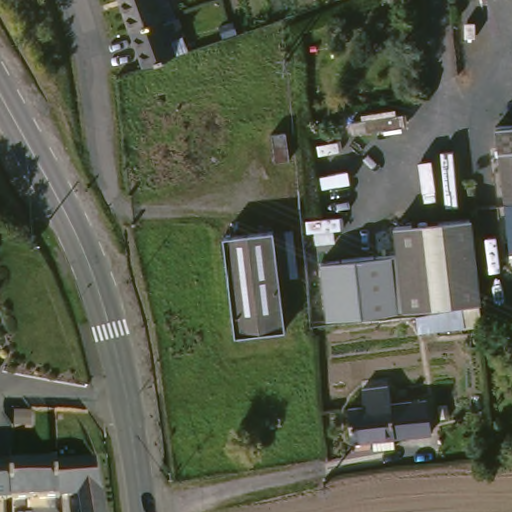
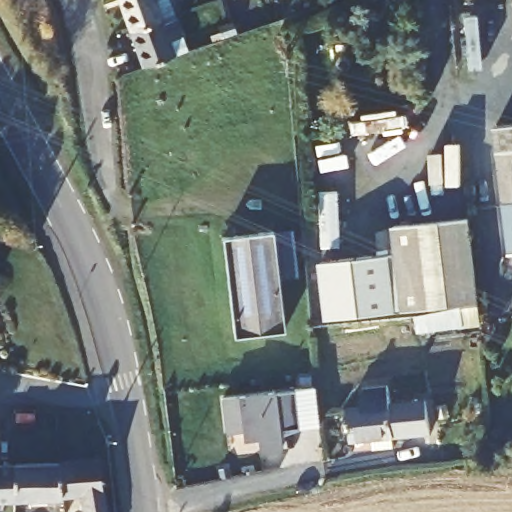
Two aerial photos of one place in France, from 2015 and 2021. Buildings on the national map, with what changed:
unchanged [(184,18),(196,51),(150,66),(126,0),(163,0),(171,23),(184,18)]
unchanged [(512,199),(505,146),(502,122),(512,121),(512,199)]
unchanged [(473,215),(479,272),(482,300),(409,309),(409,314),(342,322),(336,267),(403,259),(399,224),(473,215)]
unchanged [(280,224),(291,325),(242,330),(230,229),(280,224)]
unchanged [(483,307),(484,325),(422,334),(419,317),(483,307)]
unchanged [(397,399),(433,396),(437,428),(400,430),(402,442),(387,444),(386,434),(359,438),(354,404),(369,403),(367,387),(395,383),(397,399)]
new [(278,437),(280,452),(258,455),(256,437),(242,439),(241,432),(225,434),(220,399),(292,390),(297,429),(297,430),(278,437)]
unchanged [(108,457),(116,512),(94,512),(91,492),(26,495),(0,496),(0,462),(24,461),(87,458),(108,457)]

